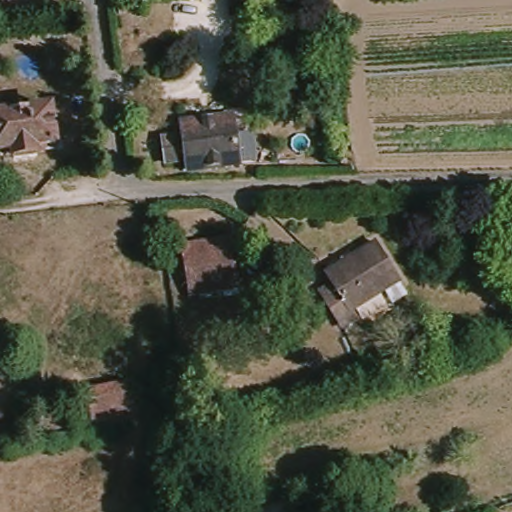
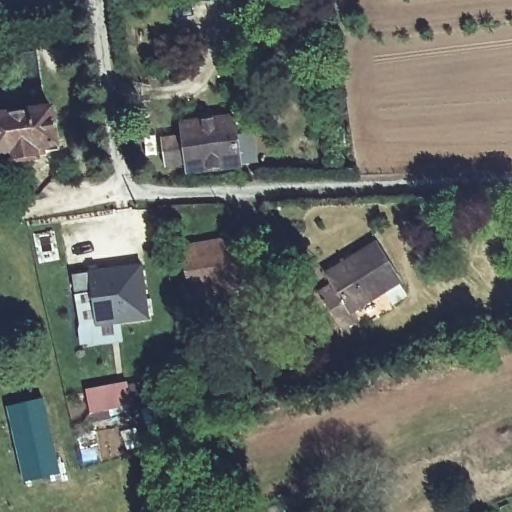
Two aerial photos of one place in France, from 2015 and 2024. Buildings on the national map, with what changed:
unchanged [(57,152),(40,153),(40,159),(12,162),(12,157),(0,157),(0,119),(53,115),(57,152)]
unchanged [(238,127),(240,171),(185,178),(185,167),(162,168),(161,149),(184,145),(183,132),(238,127)]
unchanged [(229,246),(235,292),(191,299),(185,251),(229,246)]
unchanged [(376,250),(402,285),(356,317),(361,323),(347,334),(323,301),(338,288),(331,278),(376,250)]
new [(90,288),(73,291),(72,276),(142,266),(148,320),(95,326),(90,288)]
unchanged [(92,396),(126,387),(131,407),(95,415),(92,396)]
new [(47,400),(62,474),(27,481),(12,408),(47,400)]

